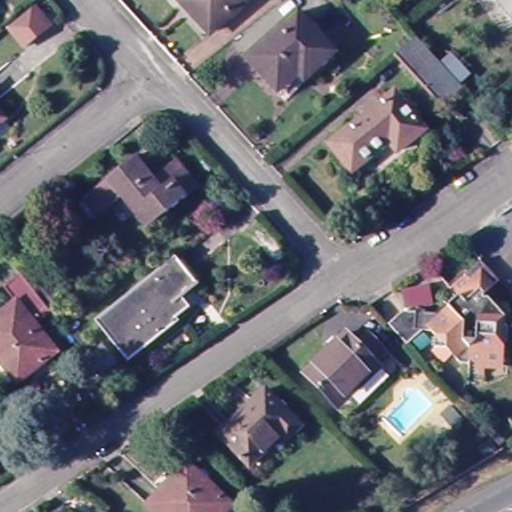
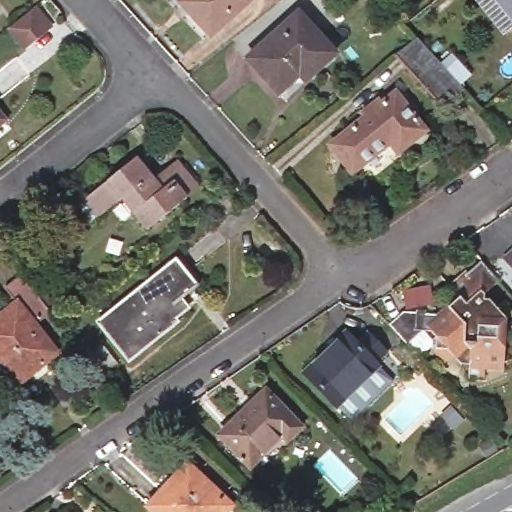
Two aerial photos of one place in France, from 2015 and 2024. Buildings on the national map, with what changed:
unchanged [(184,0),(248,0),(212,33),(191,10),(182,2),(184,0)]
unchanged [(512,21),(495,0),(512,0),(512,21)]
unchanged [(50,30),(22,54),(5,32),(33,9),(50,30)]
unchanged [(337,54),(312,76),(306,69),(280,94),(249,59),(299,12),(337,54)]
unchanged [(441,109),(393,56),(416,36),(464,89),(465,90),(441,109)]
unchanged [(425,133),(396,154),(387,143),(351,171),(327,143),(392,93),(425,133)]
unchanged [(151,229),(126,199),(99,219),(87,203),(142,162),(156,177),(180,160),(204,187),(151,229)]
unchanged [(200,283),(182,296),(190,305),(178,315),(180,319),(132,357),(100,317),(177,256),(200,283)]
unchanged [(512,334),(512,346),(510,346),(508,366),(490,365),(490,374),(474,373),(473,365),(465,365),(451,348),(440,348),(440,337),(435,330),(428,331),(411,347),(392,327),(407,311),(450,313),(452,306),(446,300),(458,290),(471,277),(470,275),(485,262),(503,281),(489,295),(511,321),(512,334)]
unchanged [(52,314),(36,325),(59,353),(20,385),(0,359),(0,318),(19,303),(7,289),(22,276),(52,314)]
unchanged [(347,399),(336,409),(306,379),(347,340),(357,350),(367,339),(387,359),(376,369),(383,378),(353,406),(350,402),(347,399)]
unchanged [(297,430),(283,444),(276,438),(245,468),(215,438),(261,394),(297,430)]
unchanged [(462,417),(453,426),(440,412),(450,403),(462,417)]
unchanged [(229,512),(155,512),(150,507),(189,466),(233,507),(229,512)]

